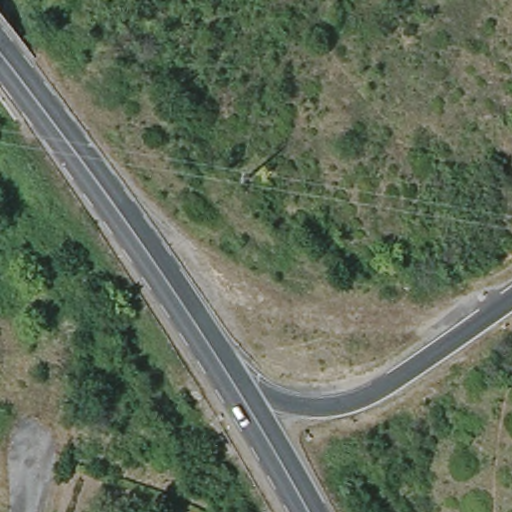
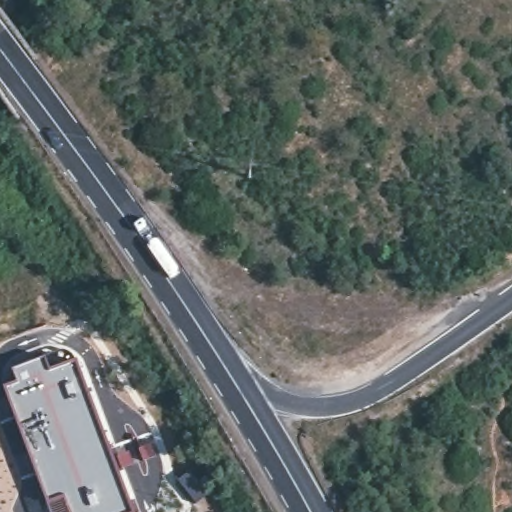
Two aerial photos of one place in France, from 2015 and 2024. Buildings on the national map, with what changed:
new [(10,369),(45,353),(51,366),(75,356),(86,380),(117,467),(134,511),(133,512),(50,512),(2,387),(15,380),(10,369)]

